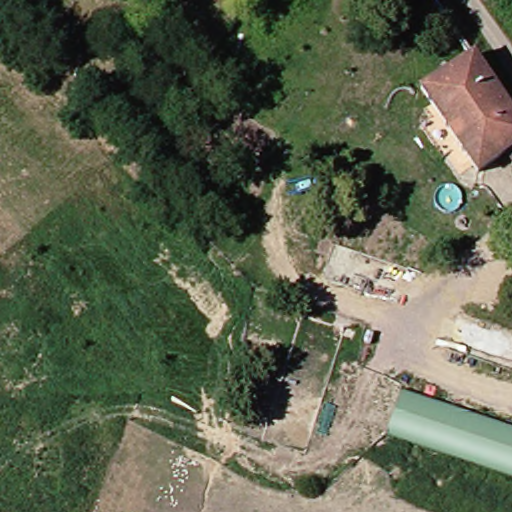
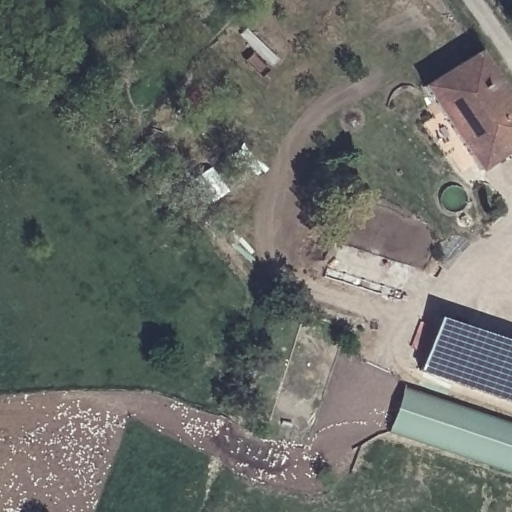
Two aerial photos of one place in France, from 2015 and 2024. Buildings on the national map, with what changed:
unchanged [(512,103),(512,151),(511,149),(483,168),(424,90),(474,53),(512,103)]
new [(437,318),(512,343),(512,403),(417,371),(437,318)]
unchanged [(512,423),(512,471),(388,432),(402,387),(512,423)]

